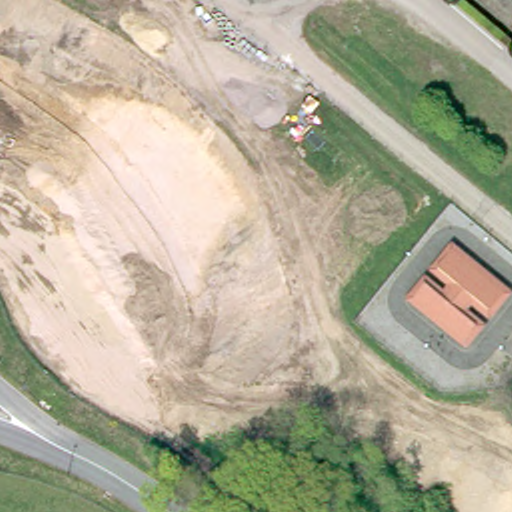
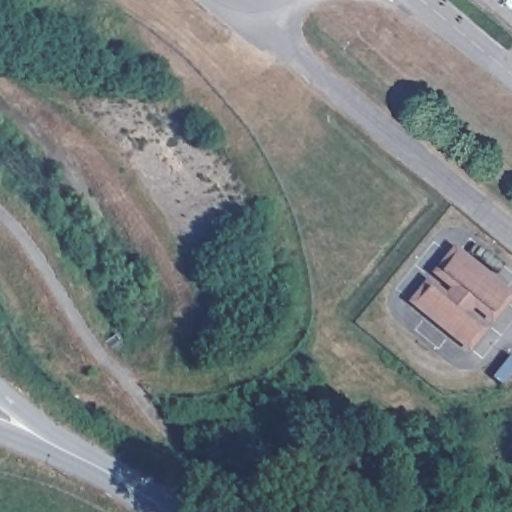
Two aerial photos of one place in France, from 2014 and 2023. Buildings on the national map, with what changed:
unchanged [(512,294),(512,298),(490,322),(475,308),(470,314),(487,329),(469,351),(407,301),(427,277),(443,292),(447,286),(431,273),(454,244),(512,294)]

